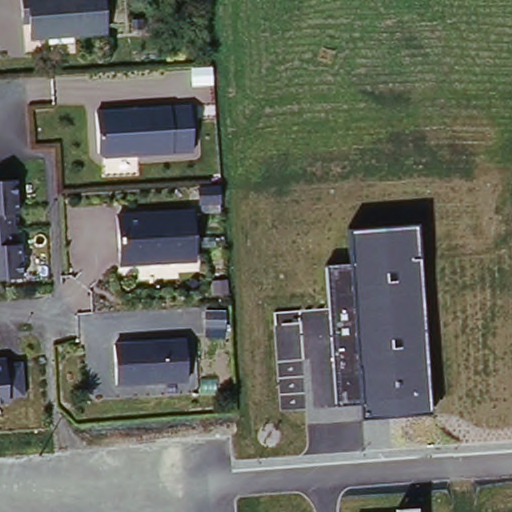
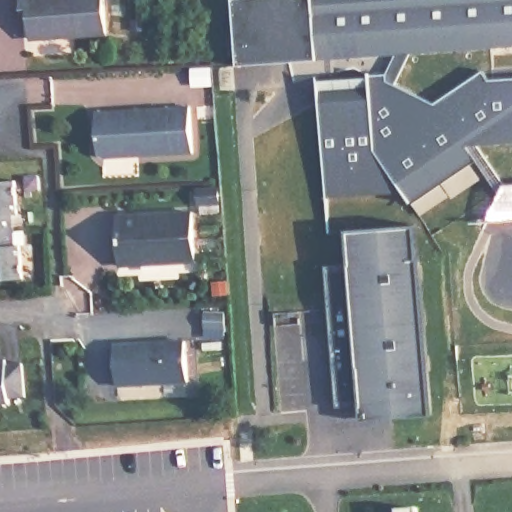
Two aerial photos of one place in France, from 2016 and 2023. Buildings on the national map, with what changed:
unchanged [(34,40),(33,17),(26,18),(25,0),(108,0),(110,35),(34,40)]
new [(285,76),(243,79),(245,37),(235,37),(235,0),(512,0),(512,37),(285,54),(285,76)]
new [(322,141),(321,89),(378,89),(428,100),(463,71),(512,68),(512,141),(472,141),(419,194),(312,195),(313,141),(322,141)]
unchanged [(198,149),(101,155),(99,110),(192,106),(198,149)]
unchanged [(17,181),(19,215),(13,215),(15,247),(21,246),(22,279),(0,280),(0,182),(17,181)]
unchanged [(197,215),(201,257),(122,262),(119,216),(197,215)]
unchanged [(432,415),(362,421),(362,405),(337,406),(327,266),(350,265),(347,232),(418,226),(432,415)]
unchanged [(184,349),(185,388),(114,391),(112,352),(184,349)]
unchanged [(27,398),(11,400),(11,405),(0,405),(0,362),(9,361),(9,366),(25,365),(27,398)]
unchanged [(396,510),(419,507),(419,512),(396,512),(396,510)]

